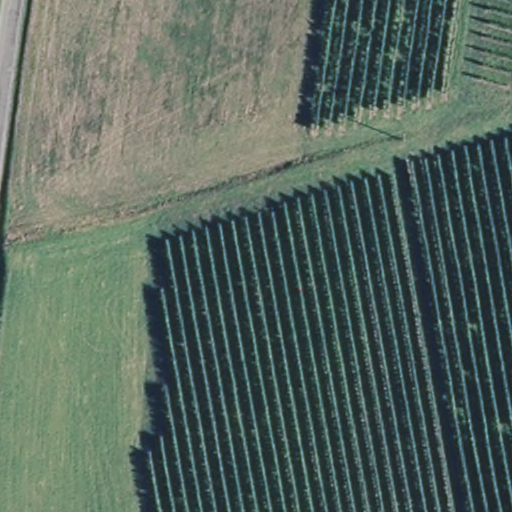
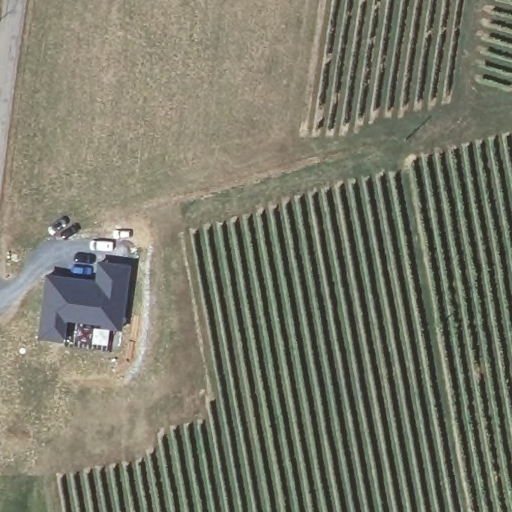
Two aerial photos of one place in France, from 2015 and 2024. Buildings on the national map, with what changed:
new [(45,273),(94,280),(97,260),(132,265),(122,331),(68,322),(65,343),(36,338),(45,273)]

